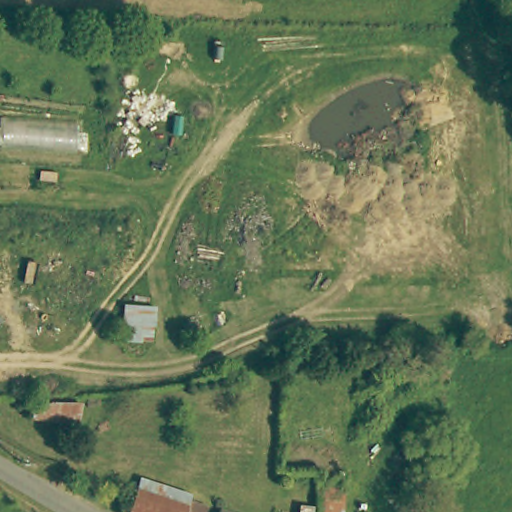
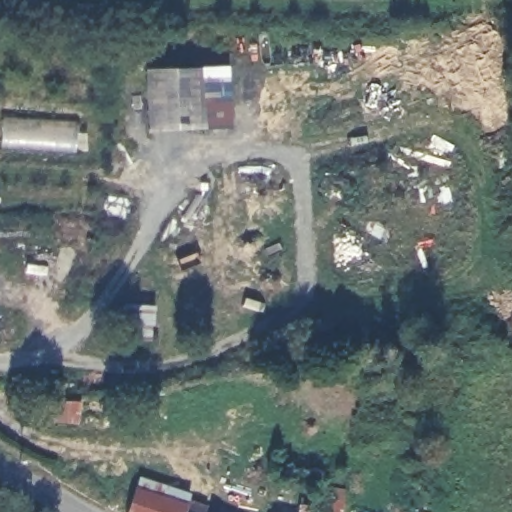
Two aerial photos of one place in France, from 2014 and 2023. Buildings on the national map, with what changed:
new [(147,125),(144,70),(201,68),(205,125),(147,125)]
unchanged [(136,488),(181,503),(191,506),(188,512),(128,512),(136,488)]
unchanged [(321,491),(349,496),(347,512),(317,512),(321,491)]
unchanged [(191,506),(192,503),(211,510),(210,512),(188,512),(191,506)]
unchanged [(432,509),(432,512),(419,512),(420,507),(432,509)]
unchanged [(223,511),(225,512),(223,512),(223,511)]

